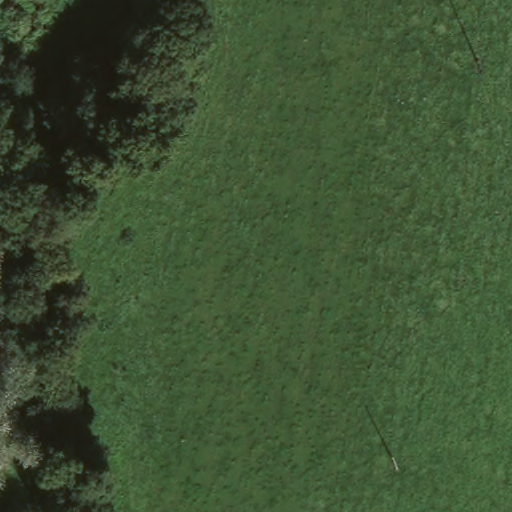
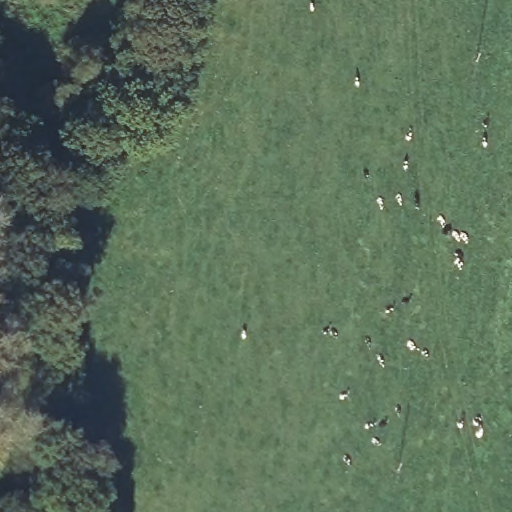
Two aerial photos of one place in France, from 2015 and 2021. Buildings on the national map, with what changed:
[]

